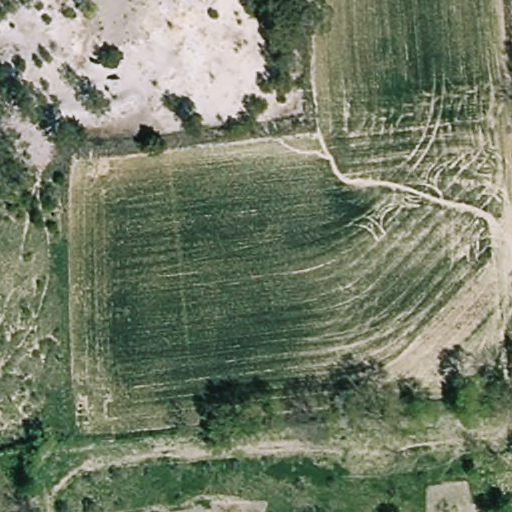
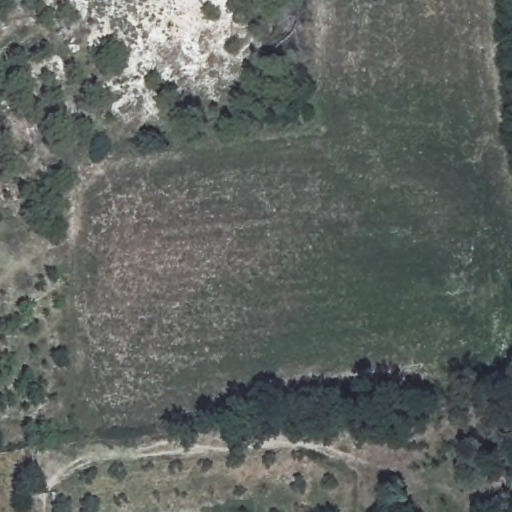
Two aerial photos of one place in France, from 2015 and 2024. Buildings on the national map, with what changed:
[]

